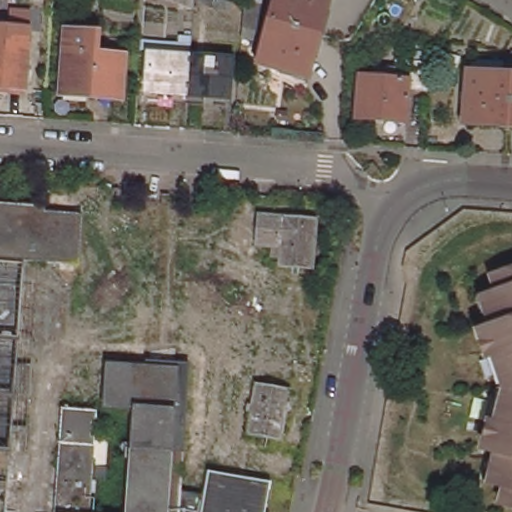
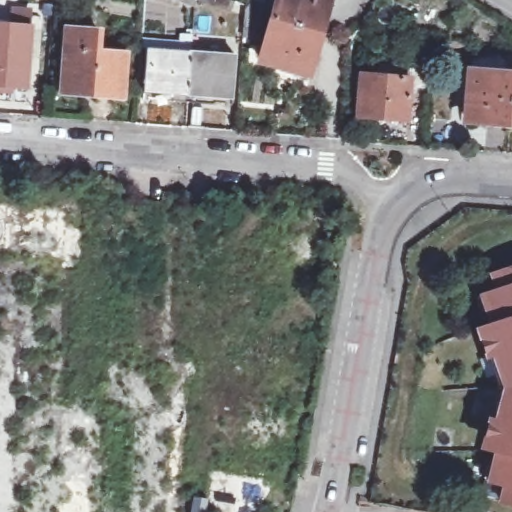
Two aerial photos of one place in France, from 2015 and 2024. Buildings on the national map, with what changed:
unchanged [(183,0),(191,0),(190,2),(183,0)]
unchanged [(200,0),(232,0),(229,9),(200,0)]
unchanged [(266,0),(263,8),(260,18),(241,11),(242,1),(243,0),(266,0)]
unchanged [(275,0),(325,0),(318,25),(272,11),(275,0)]
unchanged [(318,25),(307,65),(260,51),(272,11),(318,25)]
unchanged [(27,89),(0,87),(0,25),(34,28),(31,54),(27,89)]
unchanged [(131,50),(127,92),(70,88),(73,45),(131,50)]
unchanged [(190,91),(147,88),(151,46),(193,49),(190,91)]
unchanged [(193,49),(239,53),(235,94),(190,91),(193,49)]
unchanged [(507,64),(512,65),(512,130),(469,126),(472,78),(506,81),(507,64)]
unchanged [(426,96),(406,95),(404,128),(354,124),(357,81),(372,82),(373,72),(396,74),(395,84),(407,85),(408,70),(427,70),(426,96)]
demolished [(0,258),(0,204),(29,205),(25,260),(0,258)]
demolished [(45,206),(45,211),(80,213),(77,263),(43,261),(25,260),(29,205),(45,206)]
demolished [(261,244),(262,214),(287,216),(319,218),(316,264),(285,262),(285,246),(261,244)]
demolished [(10,459),(7,512),(0,512),(0,263),(24,265),(10,459)]
unchanged [(495,476),(489,474),(497,438),(482,434),(487,412),(494,414),(499,394),(507,396),(510,383),(506,373),(500,375),(492,354),(487,356),(480,334),(492,329),(486,310),(492,307),(488,293),(497,290),(492,271),(512,265),(512,498),(491,493),(495,476)]
demolished [(137,409),(107,407),(110,363),(149,367),(150,360),(192,364),(182,494),(205,497),(210,471),(275,482),(270,512),(130,512),(137,409)]
demolished [(254,429),(260,383),(292,388),(284,434),(254,429)]
demolished [(93,512),(57,512),(65,414),(100,417),(98,435),(95,471),(93,512)]

